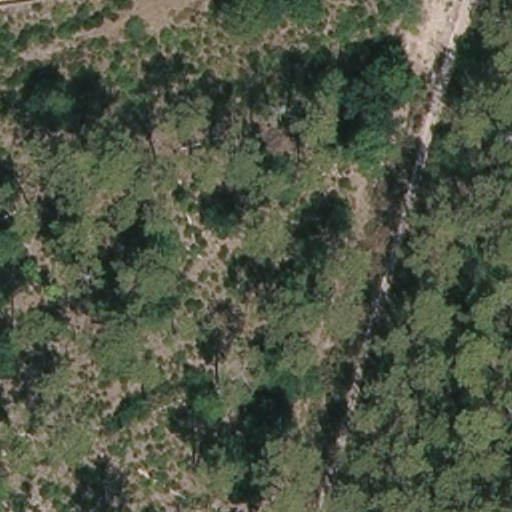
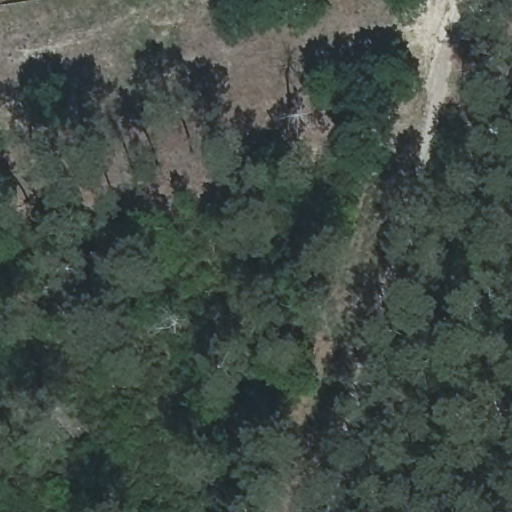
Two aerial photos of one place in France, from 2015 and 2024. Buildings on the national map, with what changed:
[]

